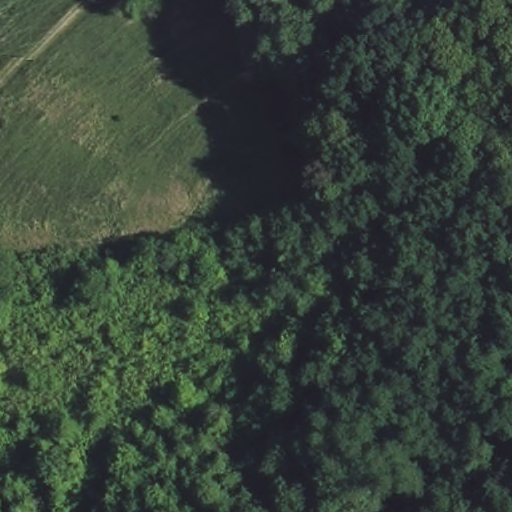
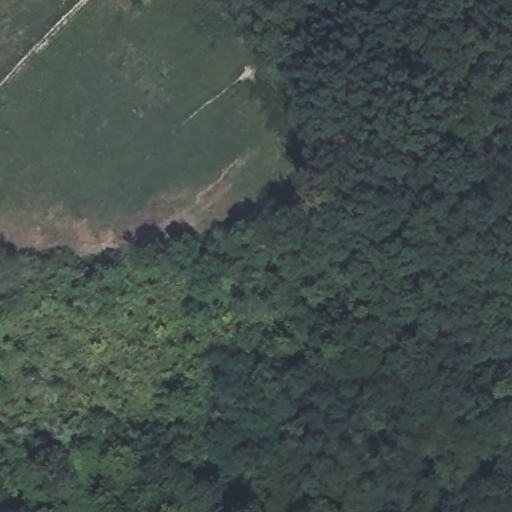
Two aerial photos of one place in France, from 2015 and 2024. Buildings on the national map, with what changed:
[]

